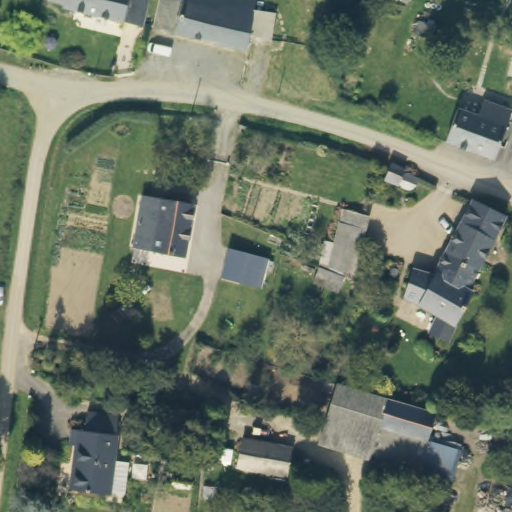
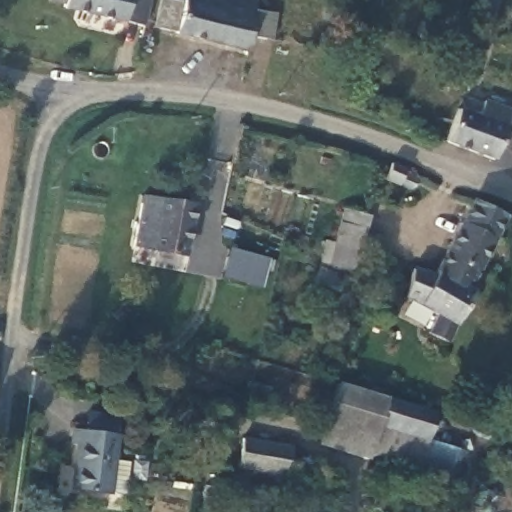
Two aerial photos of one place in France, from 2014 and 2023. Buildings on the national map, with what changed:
unchanged [(66,7),(61,7),(62,1),(52,0),(145,0),(142,16),(140,25),(66,7)]
unchanged [(268,42),(249,37),(246,50),(178,36),(157,32),(164,0),(185,4),(186,0),(254,0),(257,0),(254,12),(274,16),(268,42)]
unchanged [(443,145),(455,113),(475,119),(480,104),(508,114),(491,162),(443,145)]
unchanged [(411,188),(381,176),(388,160),(391,161),(417,172),(411,188)]
unchanged [(182,260),(129,251),(137,205),(139,197),(160,201),(193,208),(182,260)]
unchanged [(422,334),(432,316),(398,298),(406,272),(426,277),(467,204),(501,220),(463,292),(467,294),(442,344),(439,342),(422,334)]
unchanged [(328,205),(365,211),(359,246),(322,241),(328,205)]
unchanged [(262,289),(225,279),(232,249),(270,259),(262,289)]
unchanged [(323,263),(348,275),(342,289),(317,277),(323,263)]
unchanged [(318,441),(336,384),(387,400),(380,424),(427,437),(417,464),(368,450),(366,456),(321,442),(318,441)]
unchanged [(380,424),(387,400),(435,414),(427,437),(380,424)]
unchanged [(125,464),(123,485),(107,483),(106,494),(67,490),(73,445),(67,444),(68,430),(81,431),(83,413),(116,417),(114,435),(111,463),(125,464)]
unchanged [(245,441),(292,450),(287,477),(240,469),(245,441)]

